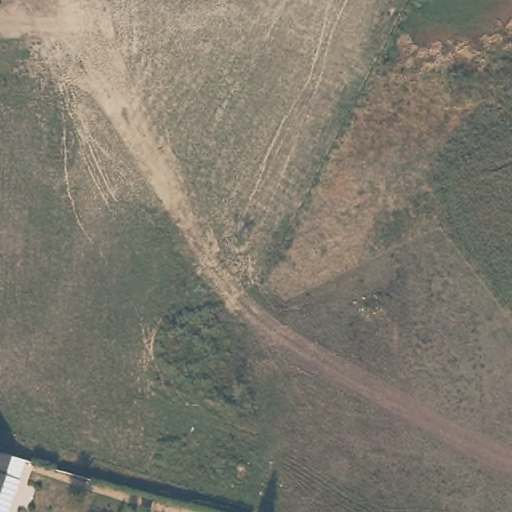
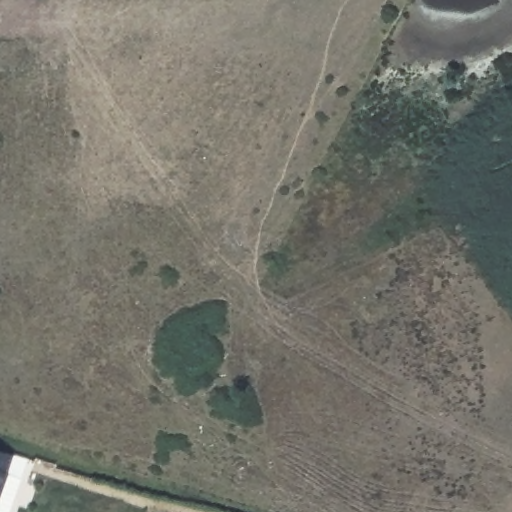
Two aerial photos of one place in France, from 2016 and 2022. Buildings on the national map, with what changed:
unchanged [(10,454),(14,454),(22,457),(30,459),(21,482),(9,512),(0,512),(0,452),(10,454)]

